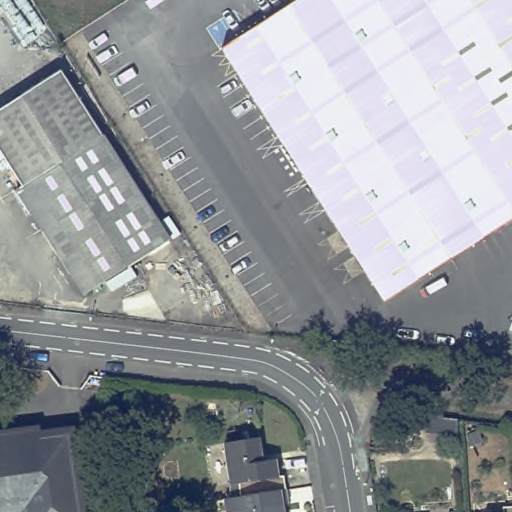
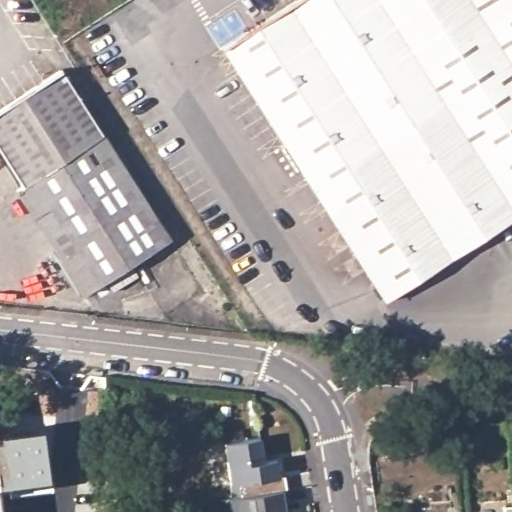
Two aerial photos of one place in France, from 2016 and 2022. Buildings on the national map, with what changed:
unchanged [(296,0),(512,0),(512,221),(385,301),(326,211),(221,48),(281,9),(296,0)]
unchanged [(167,240),(82,295),(15,189),(21,186),(0,154),(0,109),(60,70),(167,240)]
unchanged [(428,416),(458,420),(459,436),(427,432),(428,416)]
unchanged [(32,441),(63,436),(73,512),(21,512),(20,507),(0,510),(0,439),(31,435),(32,441)]
unchanged [(239,484),(230,485),(224,444),(260,438),(263,462),(277,460),(280,478),(284,477),(286,490),(240,497),(239,484)]
unchanged [(240,497),(286,490),(288,503),(283,504),(284,512),(235,512),(234,512),(228,512),(226,499),(240,497)]
unchanged [(498,507),(512,506),(512,512),(498,512),(498,507)]

